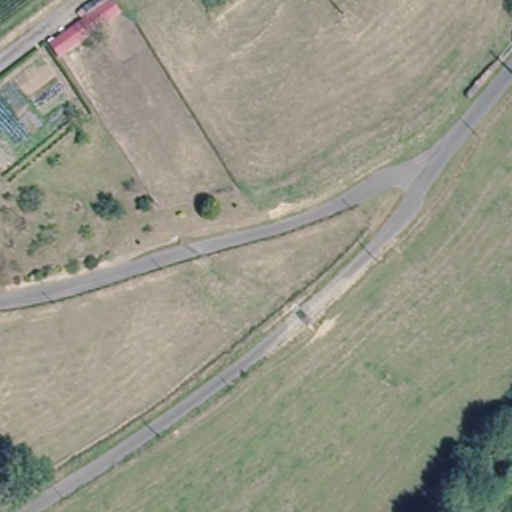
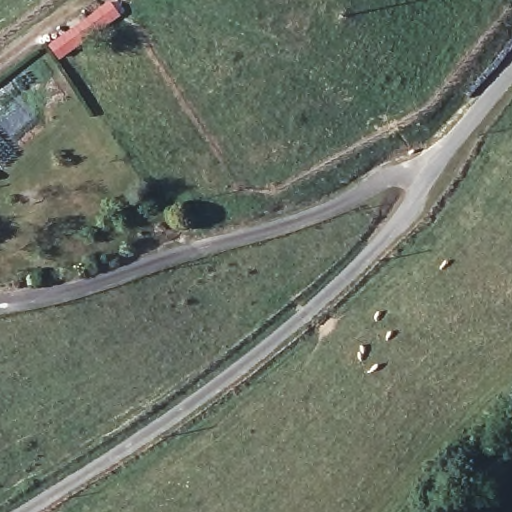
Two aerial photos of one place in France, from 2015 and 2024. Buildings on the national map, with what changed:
unchanged [(120,20),(60,64),(50,50),(110,5),(120,20)]

